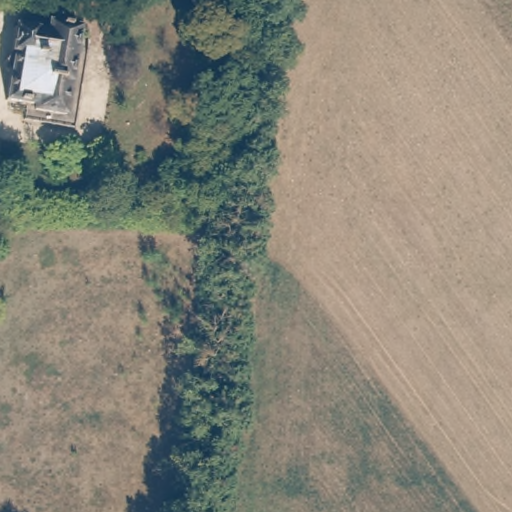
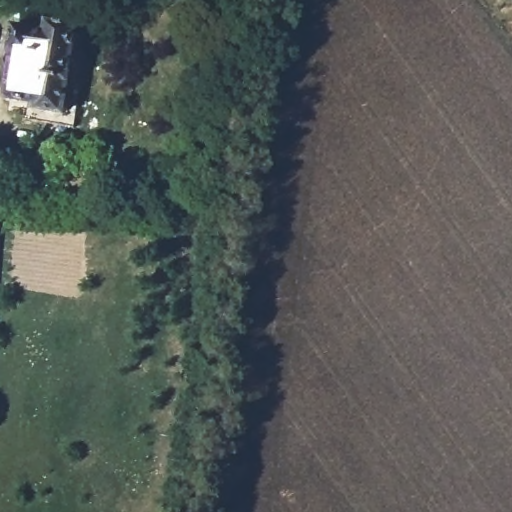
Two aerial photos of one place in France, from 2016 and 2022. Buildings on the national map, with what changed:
unchanged [(17,108),(17,100),(7,98),(8,91),(0,90),(0,81),(2,66),(0,62),(0,48),(5,36),(10,16),(19,17),(20,10),(70,19),(81,33),(65,115),(17,108)]

